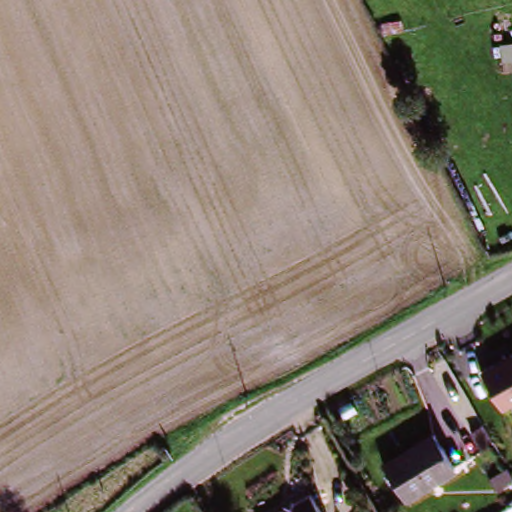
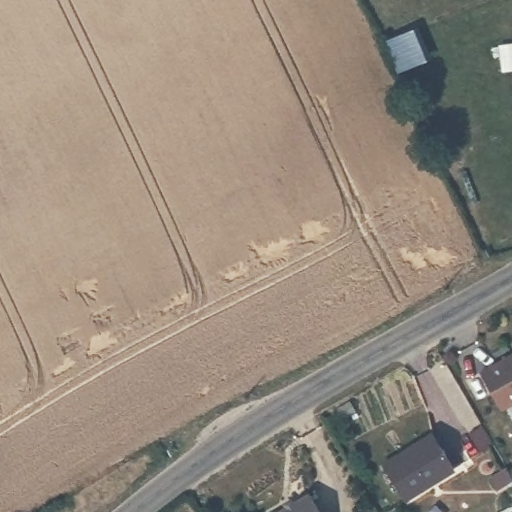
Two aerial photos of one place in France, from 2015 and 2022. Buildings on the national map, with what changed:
new [(418,26),(432,60),(398,74),(384,40),(418,26)]
unchanged [(504,46),(512,45),(512,70),(506,70),(504,46)]
unchanged [(481,376),(512,358),(512,407),(502,413),(481,376)]
unchanged [(488,451),(477,434),(488,427),(498,444),(488,451)]
unchanged [(435,439),(455,474),(405,503),(385,469),(435,439)]
unchanged [(489,478),(510,465),(512,470),(512,484),(498,492),(489,478)]
unchanged [(322,512),(283,512),(313,495),(322,512)]

